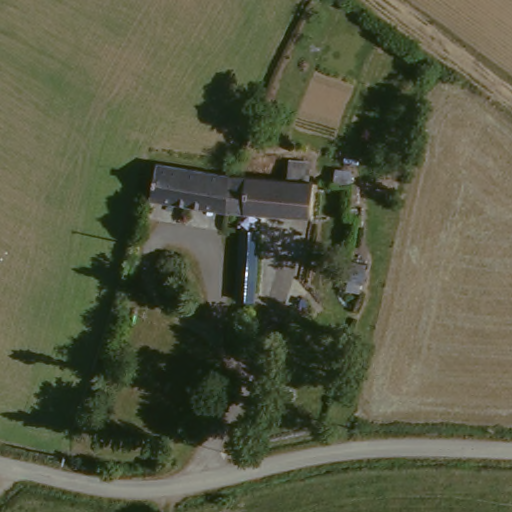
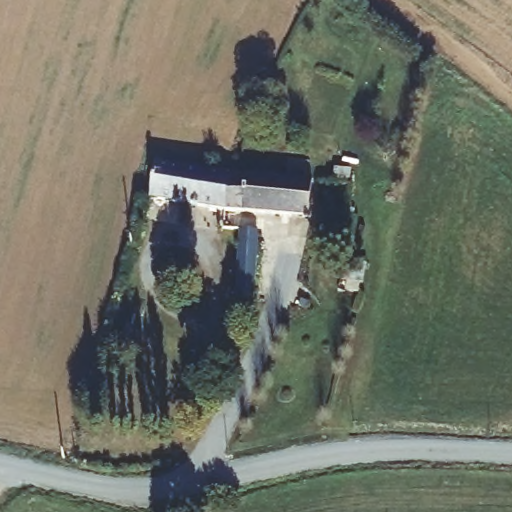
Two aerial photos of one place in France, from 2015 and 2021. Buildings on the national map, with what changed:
unchanged [(194,199),(156,194),(163,160),(198,164),(200,164),(194,199)]
unchanged [(313,213),(248,205),(227,203),(194,199),(200,164),(201,164),(233,168),(236,168),(254,170),(318,178),(313,213)]
unchanged [(253,300),(235,299),(239,268),(242,245),(243,232),(261,234),(259,246),(256,270),(253,300)]

